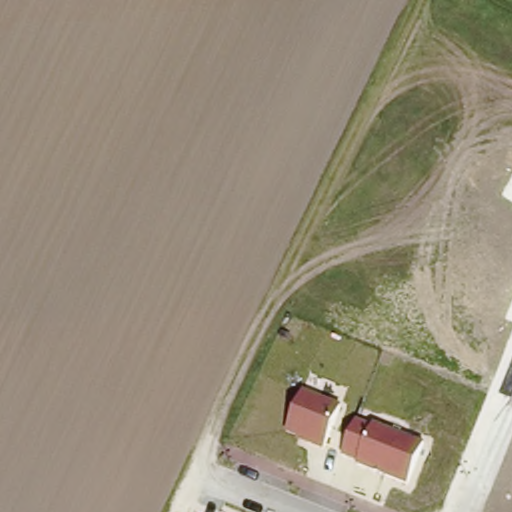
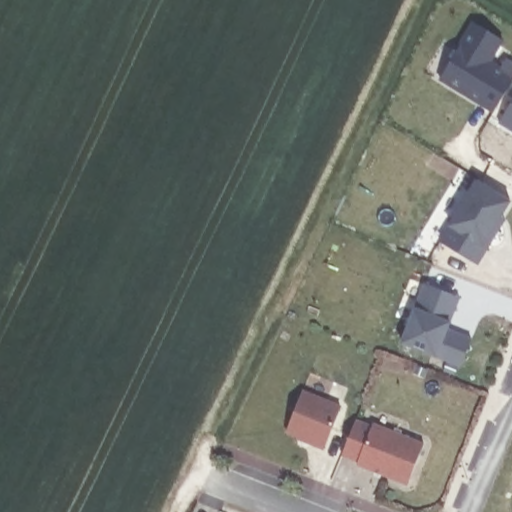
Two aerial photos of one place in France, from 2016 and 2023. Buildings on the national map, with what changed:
new [(471,20),(503,37),(490,61),(498,66),(505,57),(512,62),(512,81),(492,112),(438,80),(471,20)]
new [(512,93),(512,131),(495,121),(512,93)]
new [(476,180),(512,201),(512,202),(477,264),(438,240),(476,180)]
new [(460,297),(447,319),(450,321),(447,328),(471,338),(460,367),(435,356),(400,342),(413,305),(423,282),(460,297)]
unchanged [(287,433),(303,393),(341,408),(325,447),(287,433)]
unchanged [(407,485),(356,465),(358,461),(341,455),(356,418),(371,424),(372,421),(424,442),(407,485)]

